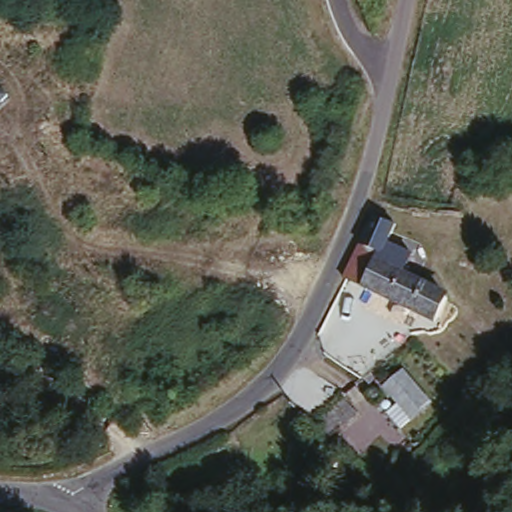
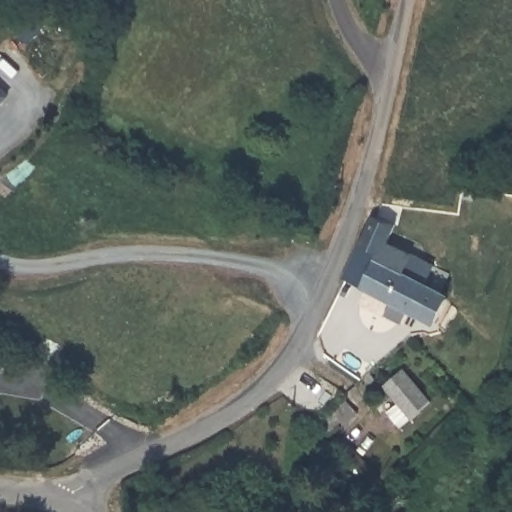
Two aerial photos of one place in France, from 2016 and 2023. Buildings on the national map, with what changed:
unchanged [(0,110),(0,84),(12,98),(0,110)]
unchanged [(399,215),(390,232),(414,247),(407,263),(442,284),(449,300),(438,319),(352,266),(349,264),(375,210),(399,215)]
unchanged [(403,365),(428,395),(411,409),(386,379),(403,365)]
unchanged [(339,400),(352,421),(339,428),(337,425),(322,434),(311,416),(339,400)]

